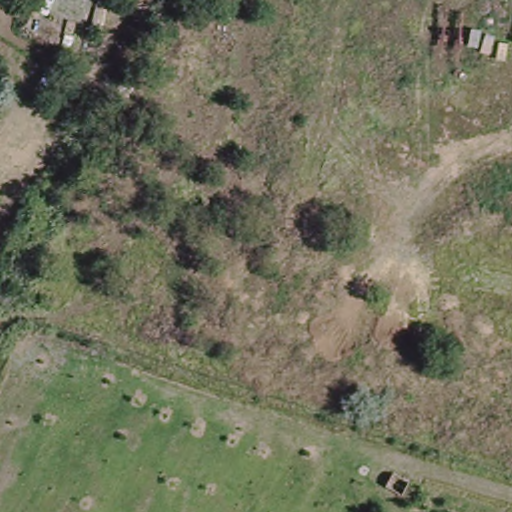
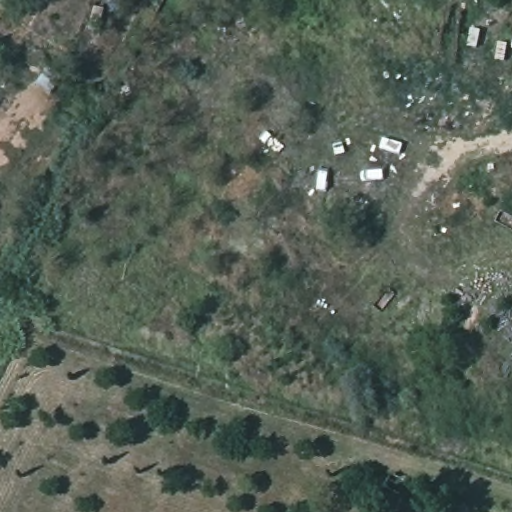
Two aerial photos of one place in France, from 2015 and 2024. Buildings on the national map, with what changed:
unchanged [(400,494),(383,484),(392,467),(409,477),(400,494)]

